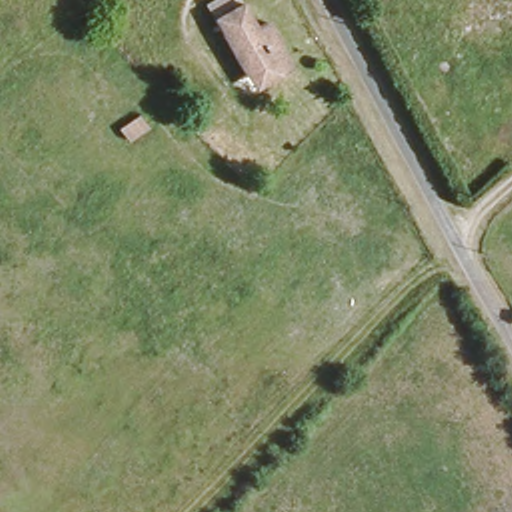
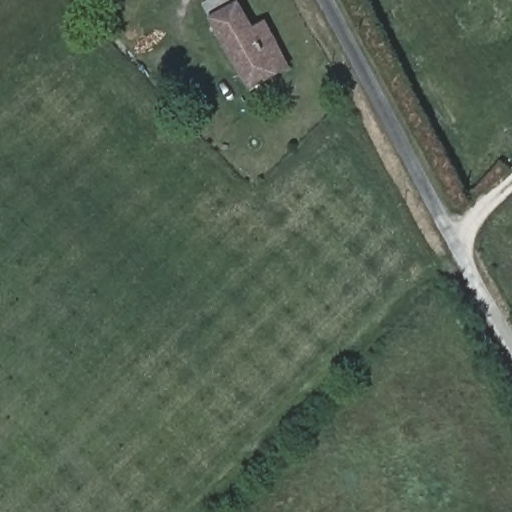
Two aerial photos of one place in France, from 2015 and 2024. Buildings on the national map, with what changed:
unchanged [(241,69),(210,15),(221,9),(235,3),(240,11),(250,29),(265,23),(290,66),(276,74),(251,87),(241,69)]

